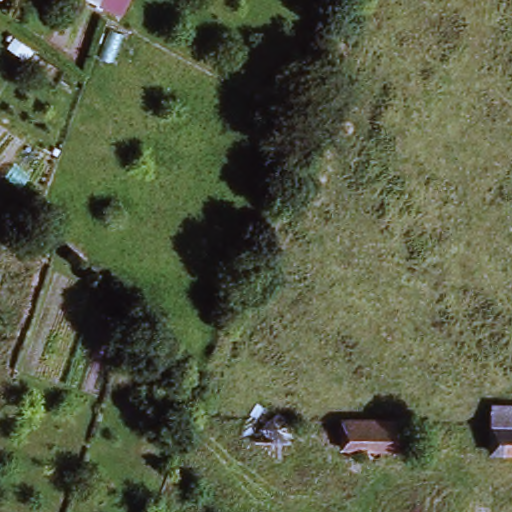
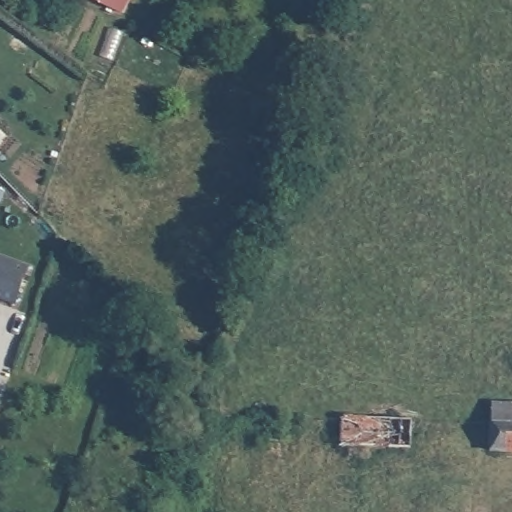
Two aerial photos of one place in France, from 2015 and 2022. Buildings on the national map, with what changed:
unchanged [(90,0),(126,0),(119,15),(90,0)]
new [(0,299),(0,259),(27,268),(15,304),(0,299)]
unchanged [(490,447),(490,400),(512,401),(512,449),(490,447)]
unchanged [(255,413),(287,414),(287,437),(254,436),(255,413)]
unchanged [(340,442),(341,415),(411,417),(410,445),(340,442)]

